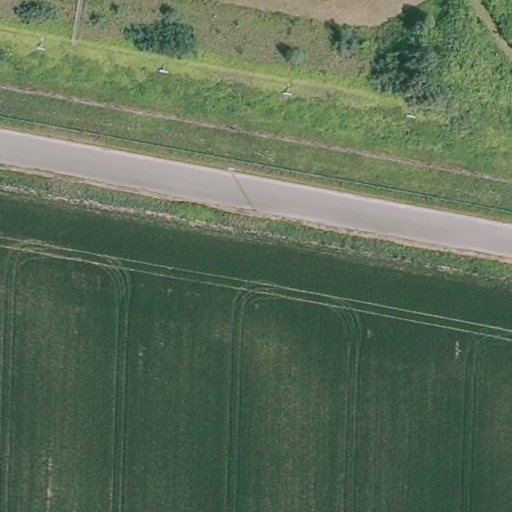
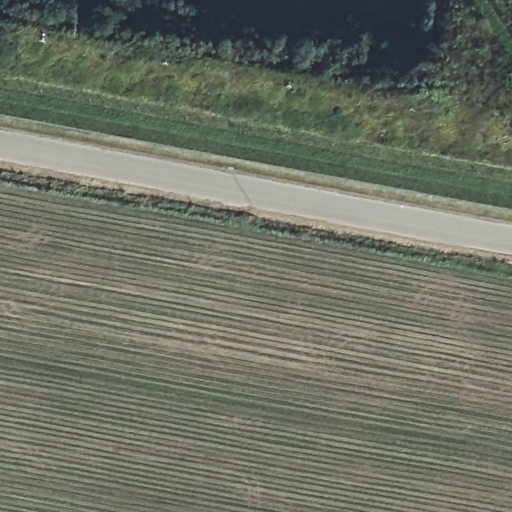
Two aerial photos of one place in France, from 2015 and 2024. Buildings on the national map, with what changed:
[]

